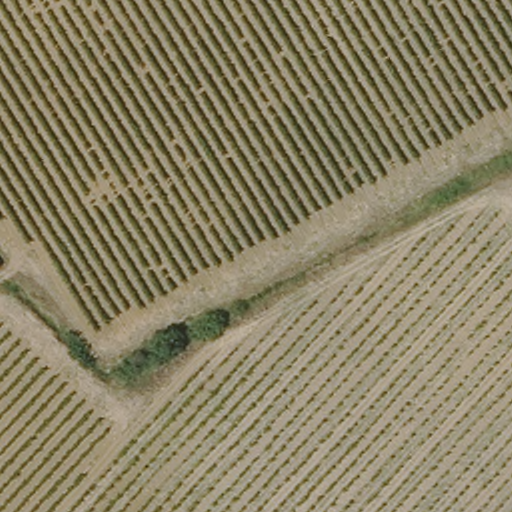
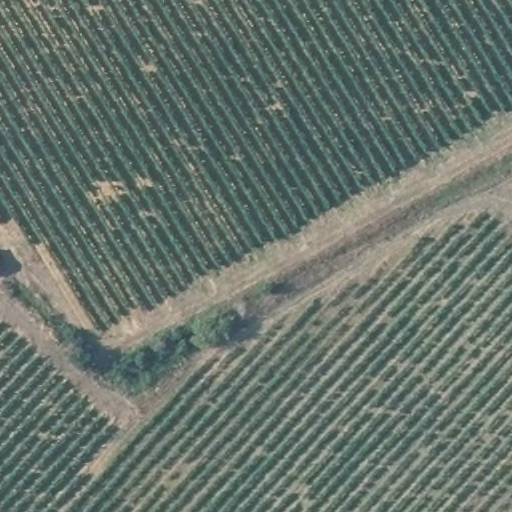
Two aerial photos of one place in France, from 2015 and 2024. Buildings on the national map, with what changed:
unchanged [(0,258),(3,262),(0,264),(0,258)]

